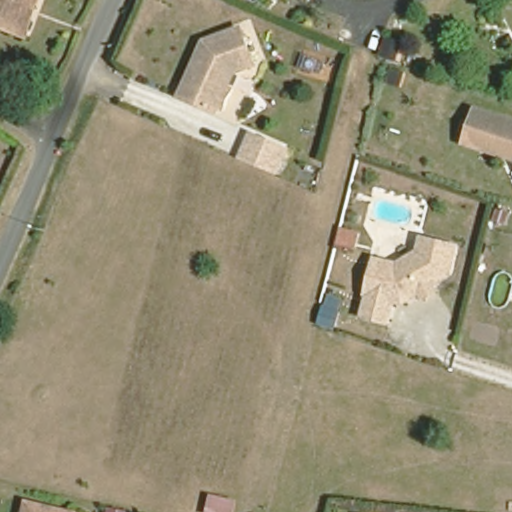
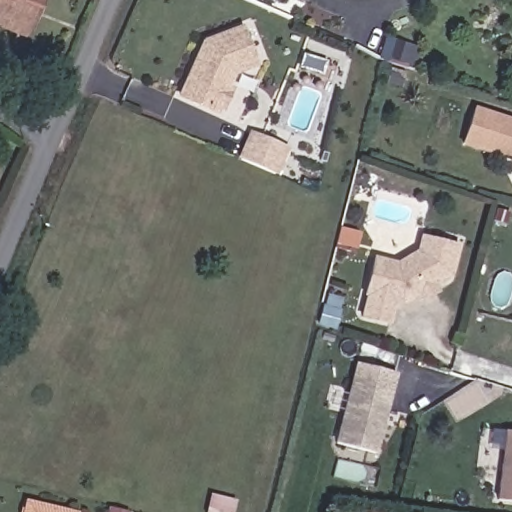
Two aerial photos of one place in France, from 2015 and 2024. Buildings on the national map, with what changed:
unchanged [(12,26),(0,22),(0,0),(38,0),(25,31),(12,26)]
unchanged [(222,83),(224,94),(221,101),(211,105),(209,108),(175,91),(200,40),(236,28),(249,63),(227,70),(226,73),(222,81),(222,83)]
unchanged [(474,107),(512,120),(512,158),(462,141),(474,107)]
new [(291,154),(282,175),(277,175),(237,158),(249,130),(289,147),(291,154)]
unchanged [(425,298),(422,293),(405,303),(395,300),(390,323),(364,316),(370,294),(368,294),(376,257),(400,264),(420,251),(424,236),(460,245),(453,274),(435,284),(439,290),(425,298)]
new [(375,453),(336,444),(354,364),(394,373),(375,453)]
new [(503,429),(512,430),(512,499),(496,498),(503,429)]
unchanged [(25,500),(75,512),(22,512),(25,500)]

